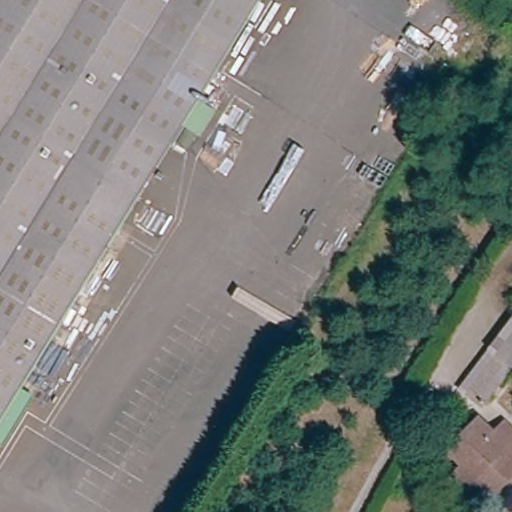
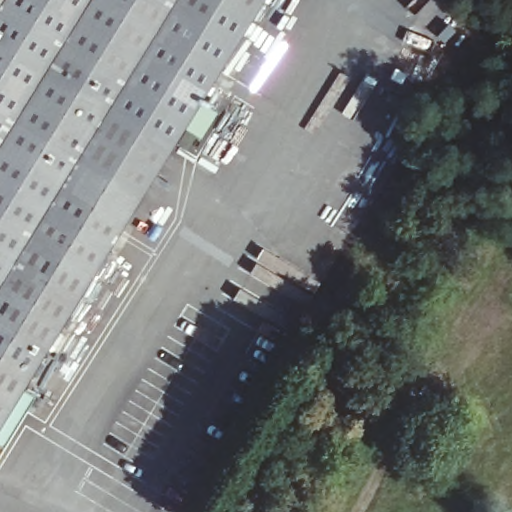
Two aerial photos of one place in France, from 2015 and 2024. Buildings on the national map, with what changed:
unchanged [(167,152),(0,425),(0,0),(261,0),(167,152)]
demolished [(512,322),(512,373),(485,408),(461,388),(512,322)]
demolished [(480,422),(496,436),(507,426),(512,430),(512,484),(495,502),(449,457),(480,422)]

